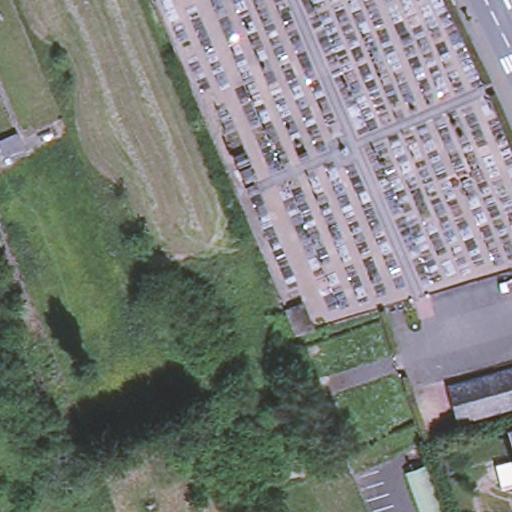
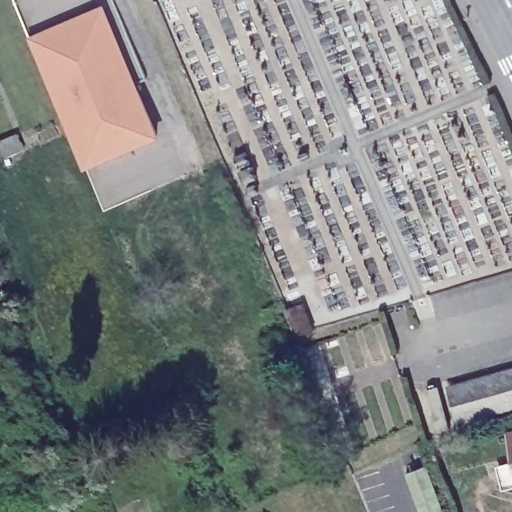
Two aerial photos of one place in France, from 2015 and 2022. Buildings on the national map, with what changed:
new [(162,134),(164,133),(166,138),(83,173),(23,37),(28,35),(103,4),(162,134)]
unchanged [(296,333),(285,307),(304,300),(314,327),(296,333)]
unchanged [(446,386),(512,369),(512,407),(456,422),(446,386)]
unchanged [(512,426),(512,459),(504,428),(512,426)]

